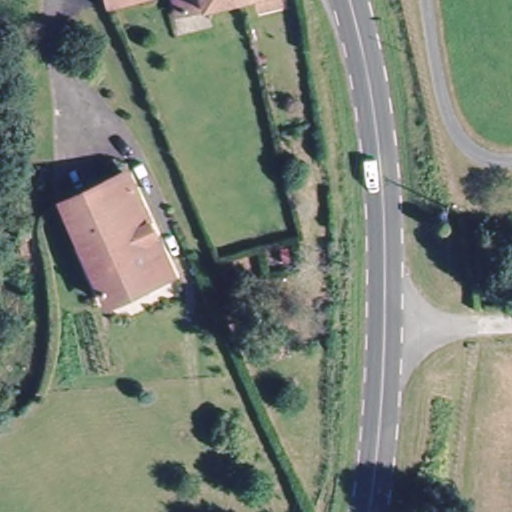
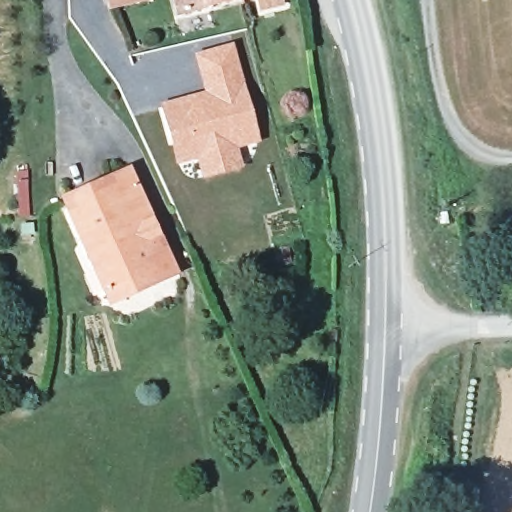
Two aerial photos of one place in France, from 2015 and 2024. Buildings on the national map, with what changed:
unchanged [(110,5),(109,0),(127,0),(110,5)]
unchanged [(230,4),(177,20),(171,0),(228,0),(230,4)]
unchanged [(230,4),(228,0),(243,0),(230,4)]
unchanged [(257,12),(253,0),(276,0),(278,6),(257,12)]
new [(202,91),(192,54),(232,42),(260,142),(237,149),(242,169),(201,179),(195,160),(174,165),(157,104),(202,91)]
unchanged [(108,297),(72,201),(135,177),(173,279),(108,297)]

